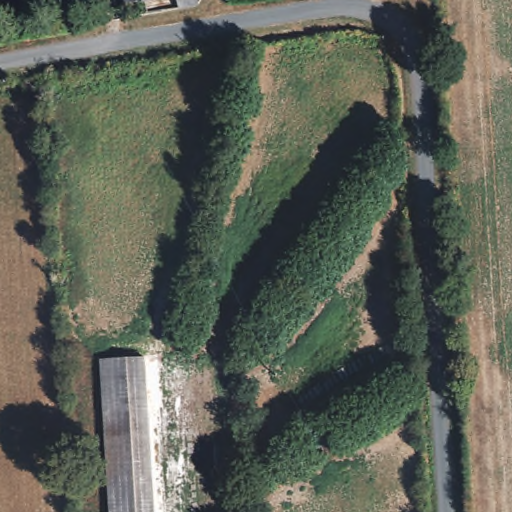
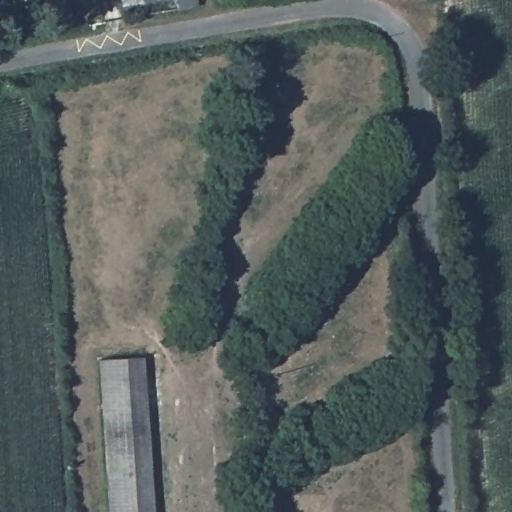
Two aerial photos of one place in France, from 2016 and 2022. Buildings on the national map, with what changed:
unchanged [(117,0),(142,0),(117,2),(117,0)]
unchanged [(173,0),(190,0),(192,10),(175,12),(173,0)]
unchanged [(109,359),(137,358),(144,512),(117,512),(109,359)]

